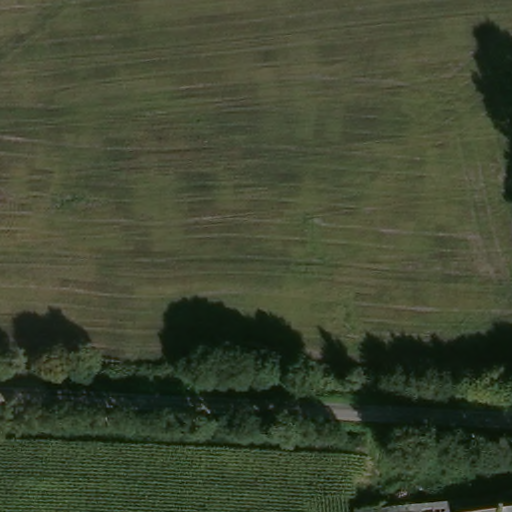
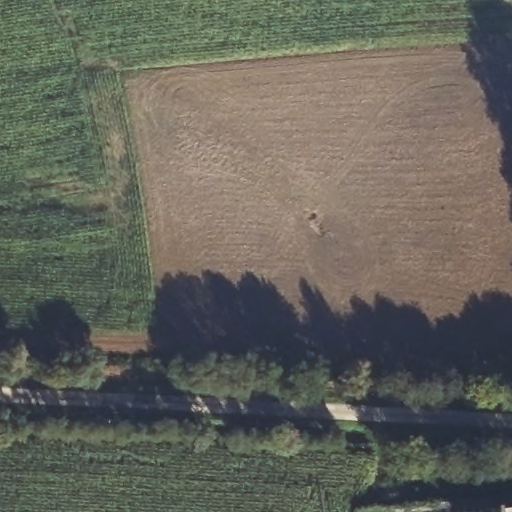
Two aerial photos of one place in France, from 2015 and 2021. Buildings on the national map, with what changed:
unchanged [(366,507),(512,488),(512,512),(366,512),(366,507)]

